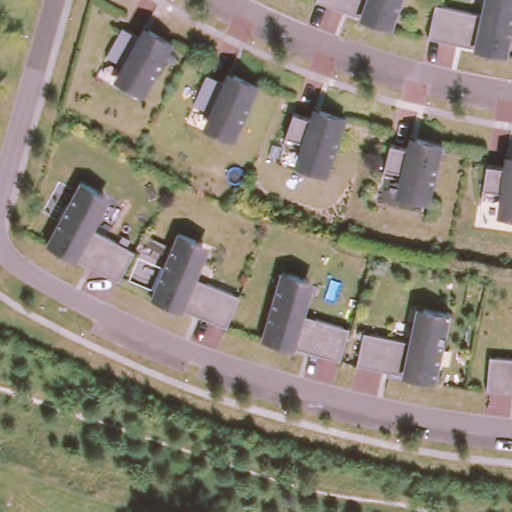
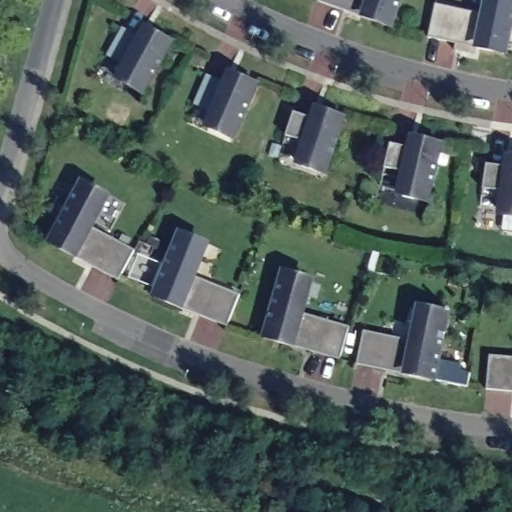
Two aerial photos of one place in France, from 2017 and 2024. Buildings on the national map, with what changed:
unchanged [(310,0),(395,0),(386,27),(355,16),(338,10),(310,0)]
unchanged [(430,4),(476,14),(478,8),(483,10),(485,0),(512,0),(501,54),(469,47),(452,44),(422,37),(430,4)]
unchanged [(138,94),(115,81),(123,67),(102,55),(117,27),(139,39),(144,30),(167,42),(138,94)]
unchanged [(233,139),(210,129),(216,114),(194,104),(207,75),(229,85),(234,74),(257,85),(233,139)]
unchanged [(320,174),(296,165),(301,150),(278,142),(288,112),(311,120),(315,109),(340,117),(320,174)]
unchanged [(428,201),(402,195),(406,180),(382,174),(390,143),(413,149),(416,137),(442,144),(428,201)]
unchanged [(506,199),(482,195),(486,164),(510,167),(512,156),(512,216),(504,215),(506,199)]
unchanged [(76,179),(99,191),(85,218),(91,221),(88,226),(130,249),(113,280),(43,241),(76,179)]
unchanged [(203,241),(192,268),(197,271),(195,276),(239,295),(226,326),(152,296),(179,231),(203,241)]
unchanged [(257,338),(277,270),(302,277),(294,306),(299,308),(298,314),(344,327),(334,360),(257,338)]
unchanged [(430,380),(351,364),(358,330),(411,341),(419,306),(444,312),(430,380)]
unchanged [(484,355),(512,358),(512,392),(481,389),(484,355)]

